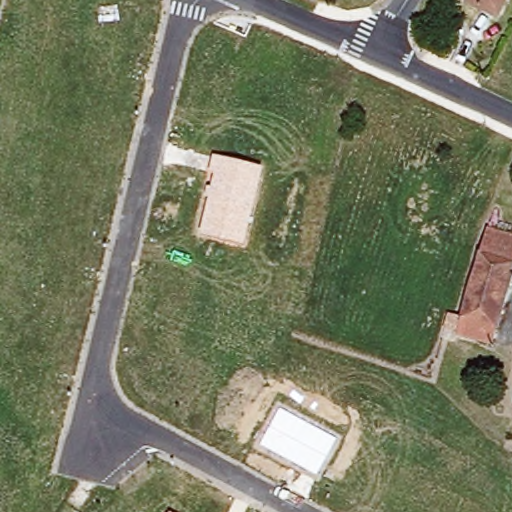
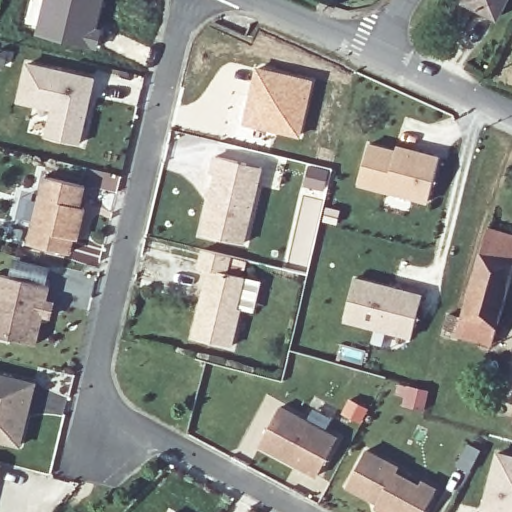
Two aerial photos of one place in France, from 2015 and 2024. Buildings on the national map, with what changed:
new [(104,0),(98,25),(104,27),(96,51),(34,33),(35,28),(22,25),(29,0),(104,0)]
unchanged [(506,0),(495,20),(460,3),(462,0),(506,0)]
new [(28,61),(93,78),(77,143),(46,134),(53,106),(19,98),(28,61)]
new [(255,66),(314,78),(300,138),(240,124),(255,66)]
new [(368,144),(395,150),(397,145),(439,155),(429,200),(359,183),(368,144)]
unchanged [(245,243),(201,232),(213,175),(209,174),(213,155),(263,167),(245,243)]
new [(302,193),(317,196),(318,191),(302,187),(308,163),(332,168),(324,204),(341,209),(337,225),(321,221),(308,269),(285,263),(302,193)]
unchanged [(87,185),(82,206),(86,207),(79,240),(75,239),(72,253),(26,243),(40,174),(87,185)]
unchanged [(452,341),(440,337),(447,311),(460,315),(486,227),(512,234),(512,269),(491,340),(456,330),(452,341)]
unchanged [(205,270),(197,269),(201,248),(233,254),(230,272),(247,275),(240,307),(243,308),(234,347),(190,336),(205,270)]
new [(52,283),(48,299),(56,301),(52,320),(44,318),(38,344),(0,336),(0,273),(52,283)]
new [(354,276),(421,295),(410,336),(343,317),(354,276)]
new [(37,381),(22,447),(0,442),(0,372),(37,381)]
unchanged [(258,445),(280,405),(336,435),(315,475),(258,445)]
new [(401,465),(397,471),(419,483),(421,478),(438,486),(426,512),(379,512),(371,508),(376,501),(344,485),(366,446),(401,465)]
new [(512,456),(512,512),(492,512),(483,509),(498,452),(512,456)]
unchanged [(3,463),(0,478),(0,463),(3,463)]

